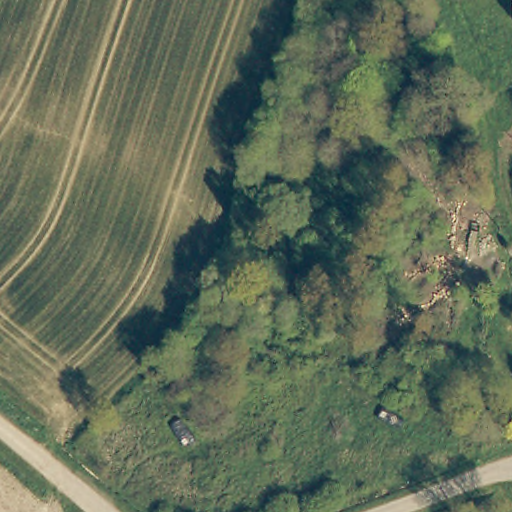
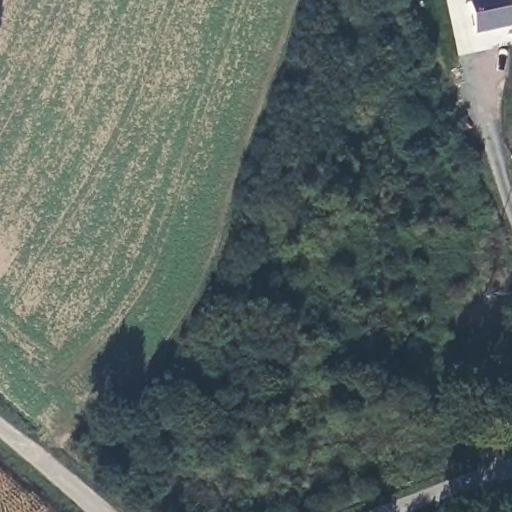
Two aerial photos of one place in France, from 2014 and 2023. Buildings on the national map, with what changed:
new [(512,23),(475,33),(472,14),(469,3),(470,0),(511,0),(512,4),(512,23)]
unchanged [(512,4),(511,0),(512,0),(512,4)]
unchanged [(304,274),(315,237),(325,239),(360,252),(348,289),(304,274)]

